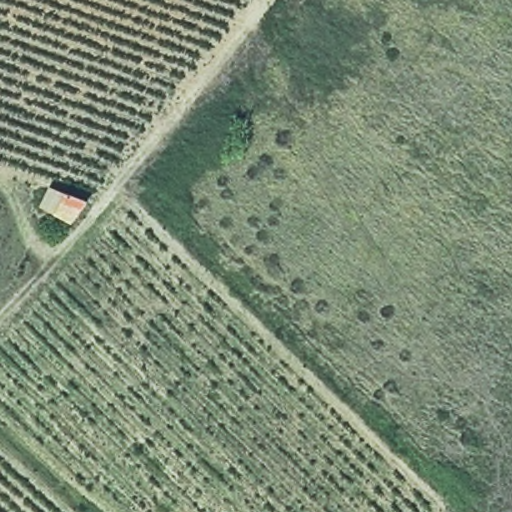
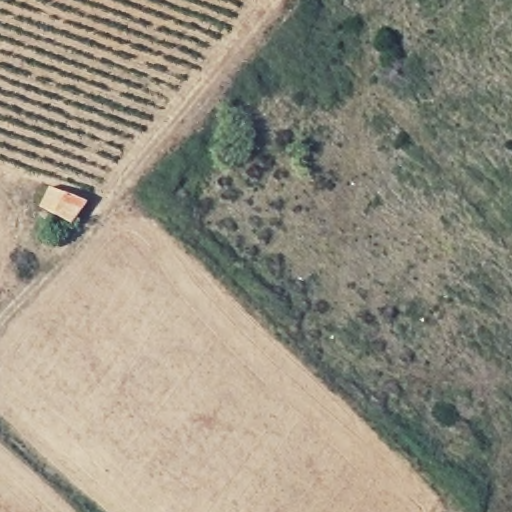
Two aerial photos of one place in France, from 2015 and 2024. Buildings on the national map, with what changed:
unchanged [(67,187),(86,194),(75,220),(54,213),(37,204),(45,179),(67,187)]

